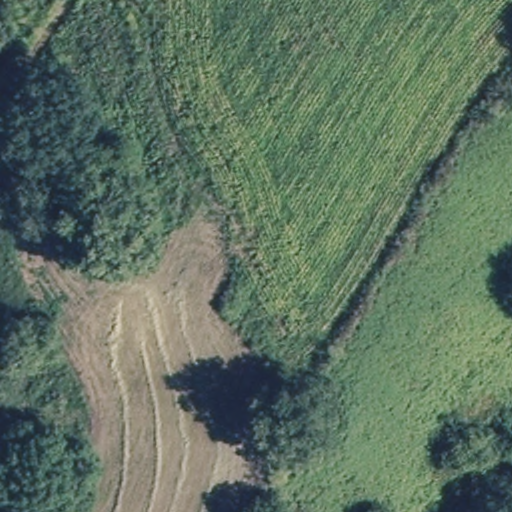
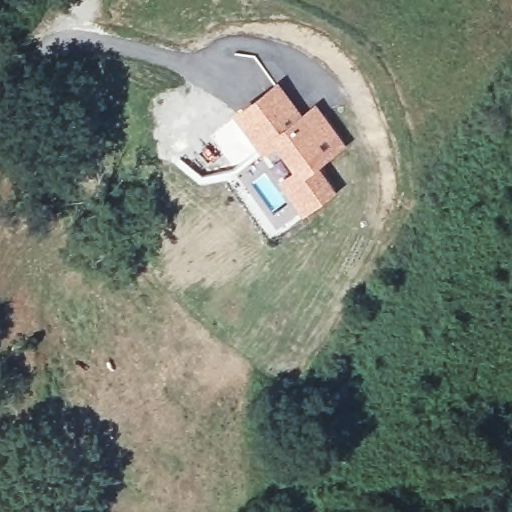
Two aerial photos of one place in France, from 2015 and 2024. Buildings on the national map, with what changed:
new [(299,114),(316,103),(345,145),(318,165),(337,192),(304,218),(278,182),(295,170),(278,147),(263,157),(231,114),(277,83),(299,114)]

